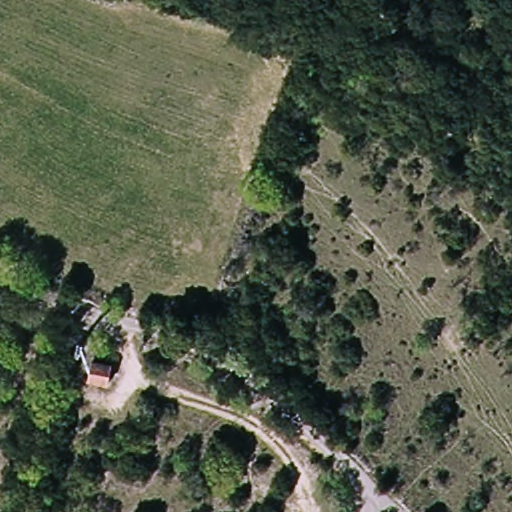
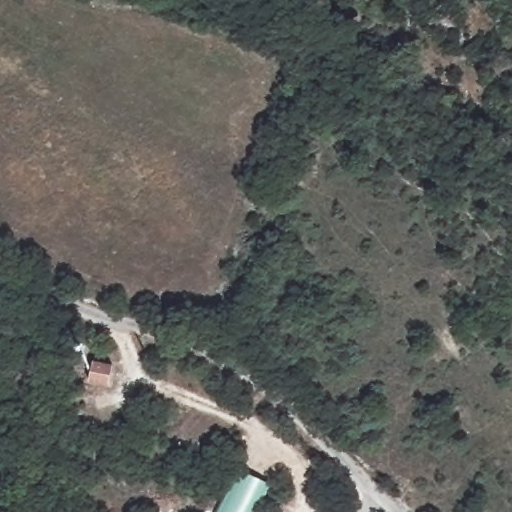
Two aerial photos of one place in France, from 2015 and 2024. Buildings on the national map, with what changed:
unchanged [(88,378),(94,361),(114,367),(108,385),(88,378)]
new [(240,468),(273,484),(258,512),(215,512),(240,468)]

